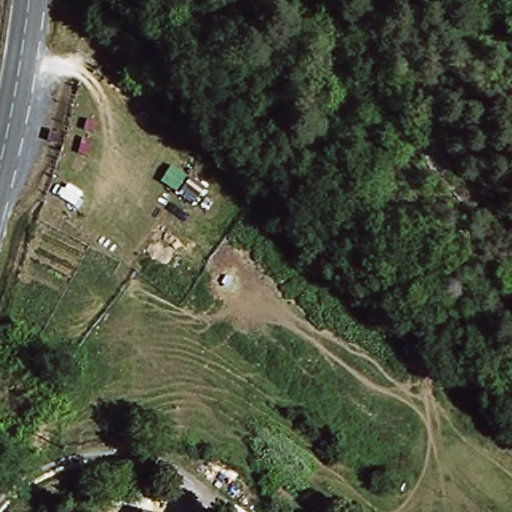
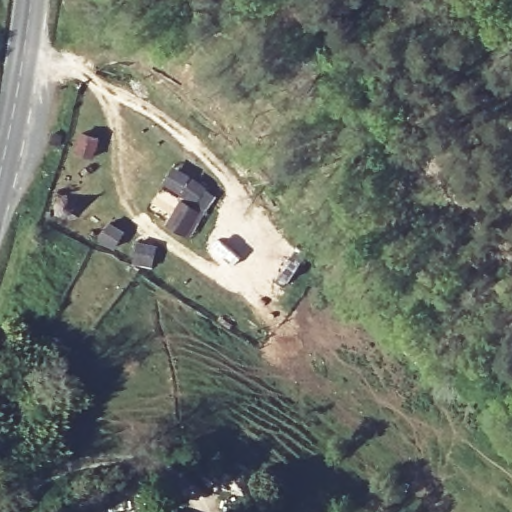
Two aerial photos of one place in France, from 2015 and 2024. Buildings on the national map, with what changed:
new [(170,165),(216,196),(187,240),(162,226),(179,198),(159,185),(170,165)]
new [(135,241),(157,244),(152,268),(130,264),(135,241)]
unchanged [(145,509),(153,512),(144,512),(145,509)]

